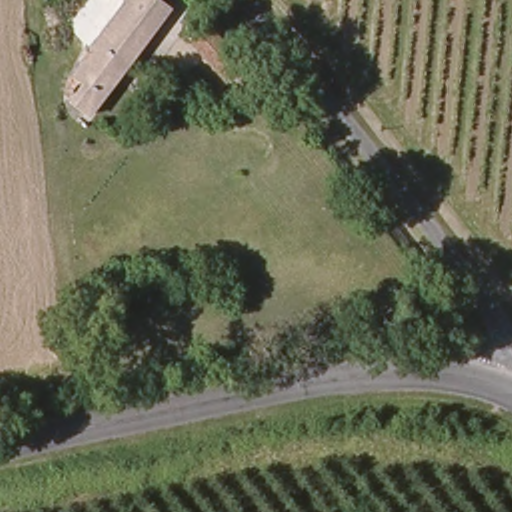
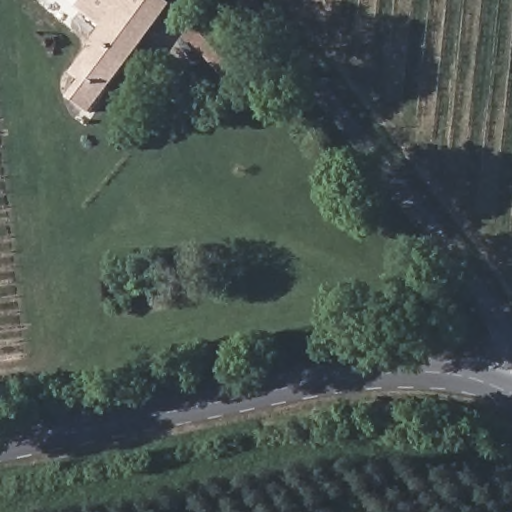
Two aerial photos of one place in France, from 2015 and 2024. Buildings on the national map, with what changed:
unchanged [(167,7),(91,121),(67,105),(81,83),(54,62),(99,0),(157,0),(167,7)]
unchanged [(241,60),(225,77),(190,39),(206,25),(241,60)]

